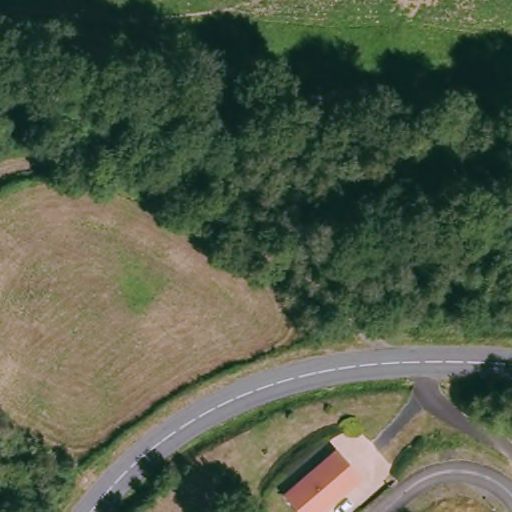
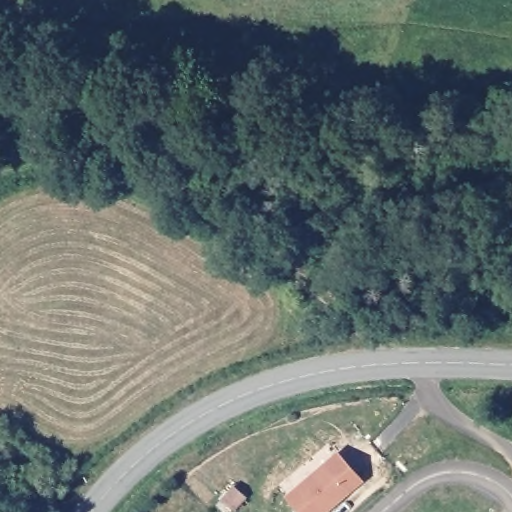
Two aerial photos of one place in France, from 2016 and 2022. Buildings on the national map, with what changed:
unchanged [(289,494),(327,460),(337,451),(363,478),(351,489),(327,512),(303,512),(289,494)]
unchanged [(255,490),(244,500),(233,490),(244,479),(255,490)]

